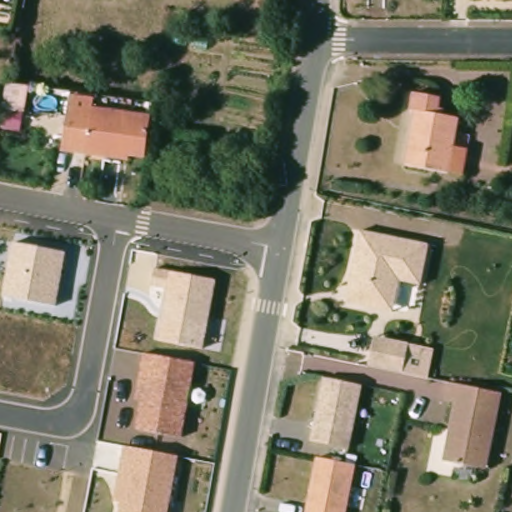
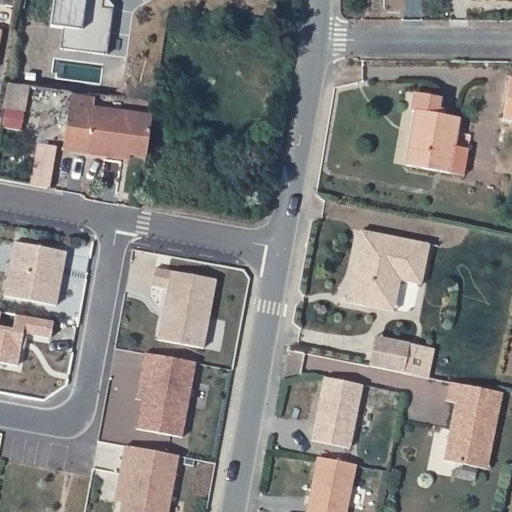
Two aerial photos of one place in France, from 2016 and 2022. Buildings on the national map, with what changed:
new [(65,27),(51,26),(55,0),(103,0),(103,5),(114,6),(105,55),(60,48),(65,27)]
new [(1,30),(0,36),(0,30),(1,30)]
unchanged [(466,172),(450,170),(406,161),(416,106),(412,105),(415,89),(442,94),(440,110),(461,114),(455,144),(470,146),(466,172)]
unchanged [(109,153),(65,147),(65,140),(52,139),(55,116),(69,118),(72,92),(97,95),(95,106),(156,114),(154,154),(136,151),(135,156),(109,153)]
unchanged [(345,305),(360,232),(430,245),(421,285),(400,281),(396,313),(345,305)]
unchanged [(15,241),(66,251),(56,305),(5,296),(15,241)]
unchanged [(217,280),(204,350),(159,340),(167,288),(152,286),(155,268),(217,280)]
new [(1,311),(0,316),(0,311),(1,311)]
new [(13,329),(15,315),(54,321),(50,338),(24,333),(17,366),(0,363),(0,327),(13,329)]
unchanged [(429,380),(367,367),(374,336),(435,350),(429,380)]
unchanged [(137,429),(142,400),(136,398),(144,353),(195,361),(182,436),(137,429)]
unchanged [(357,381),(345,445),(307,438),(319,375),(357,381)]
unchanged [(501,391),(487,468),(443,460),(454,402),(446,400),(449,382),(501,391)]
unchanged [(115,499),(125,445),(178,455),(168,512),(120,512),(121,501),(115,499)]
unchanged [(342,512),(302,512),(312,459),(351,466),(342,512)]

